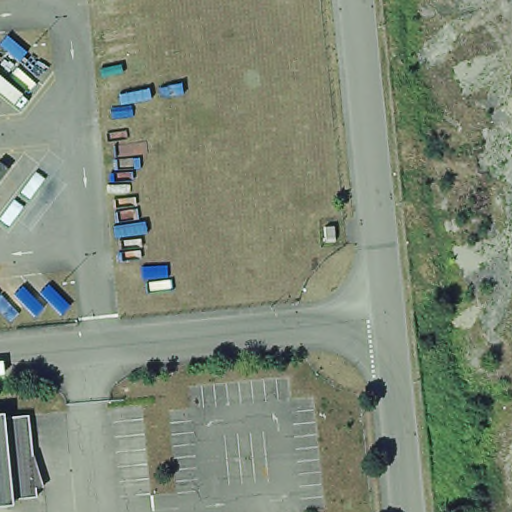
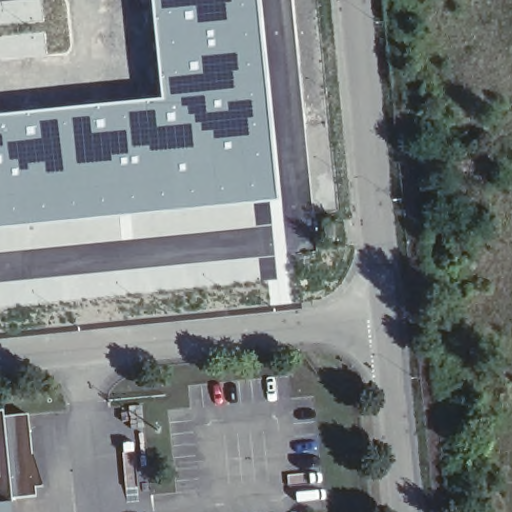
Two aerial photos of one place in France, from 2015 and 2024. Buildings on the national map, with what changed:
new [(148,0),(259,0),(280,204),(254,207),(147,216),(35,227),(0,235),(0,115),(159,99),(148,0)]
new [(147,216),(254,207),(256,226),(185,234),(2,252),(0,237),(0,235),(35,227),(147,216)]
unchanged [(333,226),(335,242),(325,242),(323,227),(333,226)]
unchanged [(31,497),(6,500),(0,438),(0,417),(22,415),(31,497)]
demolished [(7,505),(0,505),(0,438),(6,500),(7,505)]
new [(0,512),(0,438),(6,500),(7,505),(12,505),(13,512),(0,512)]

